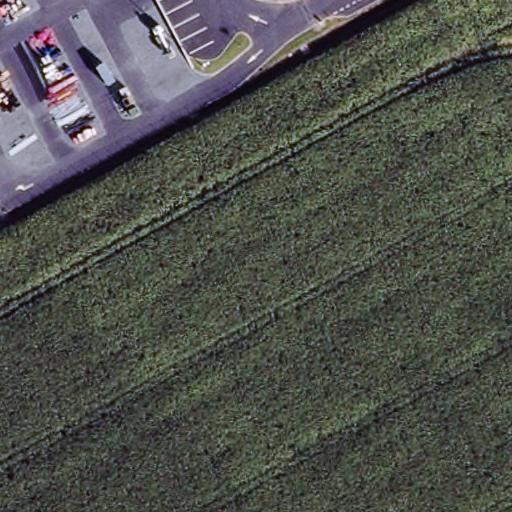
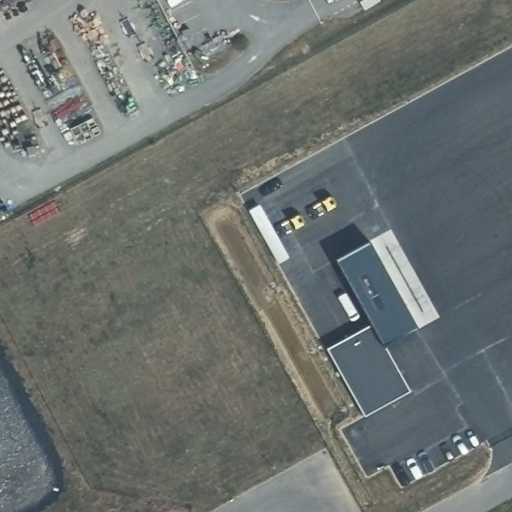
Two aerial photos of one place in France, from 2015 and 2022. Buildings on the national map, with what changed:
new [(417,329),(383,344),(411,393),(366,418),(327,351),(373,326),(338,261),(370,244),(417,329)]

